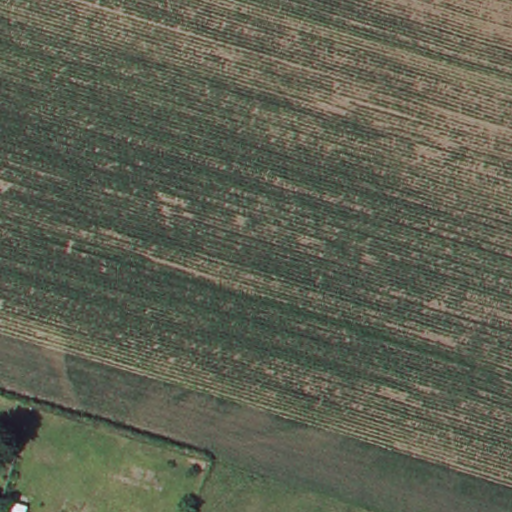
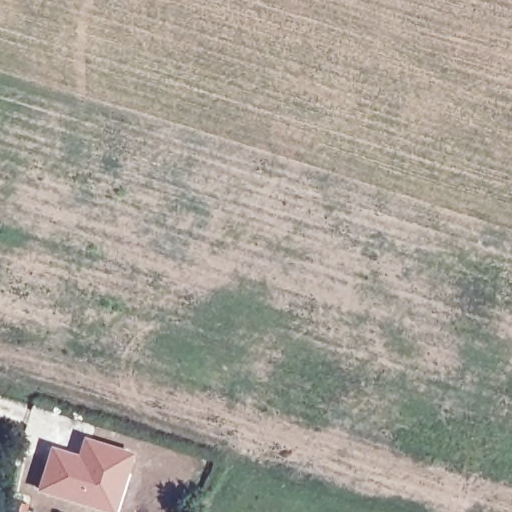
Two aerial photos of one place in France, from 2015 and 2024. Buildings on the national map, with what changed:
new [(49,445),(75,452),(82,435),(132,450),(113,512),(109,512),(35,490),(49,445)]

